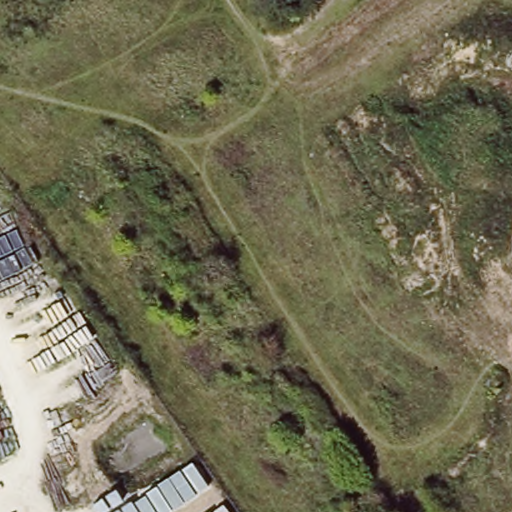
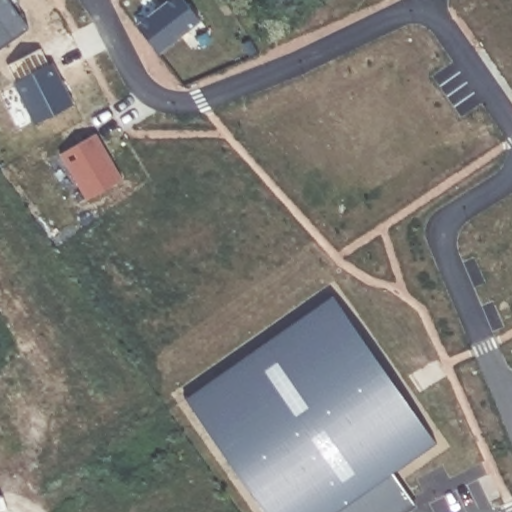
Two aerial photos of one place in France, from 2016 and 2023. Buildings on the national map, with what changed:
new [(135,25),(167,0),(184,0),(200,20),(160,54),(135,25)]
new [(393,472),(416,503),(404,512),(263,512),(184,397),(332,293),(437,439),(393,472)]

